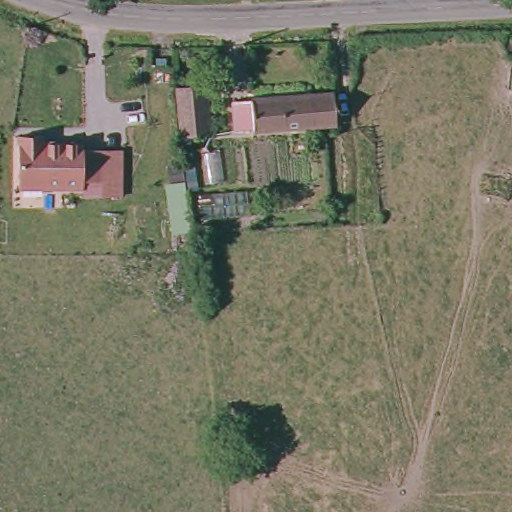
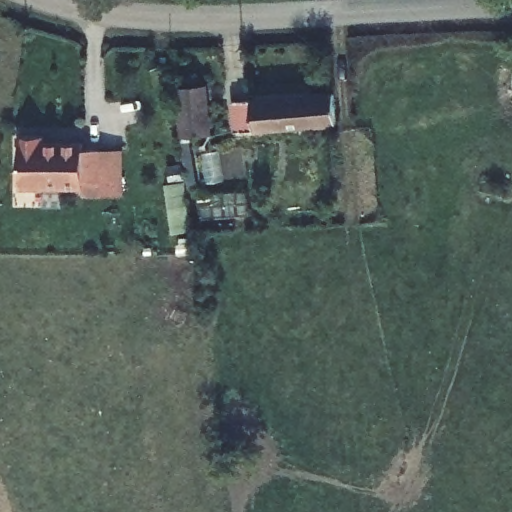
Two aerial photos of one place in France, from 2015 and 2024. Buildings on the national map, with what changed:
unchanged [(173,87),(209,88),(214,143),(177,144),(173,87)]
unchanged [(235,136),(232,105),(337,94),(340,127),(325,128),(235,136)]
unchanged [(109,177),(90,175),(89,181),(25,173),(32,121),(57,125),(56,132),(95,136),(94,143),(112,145),(109,177)]
unchanged [(132,148),(126,194),(107,191),(107,184),(89,181),(90,175),(109,177),(112,145),(132,148)]

